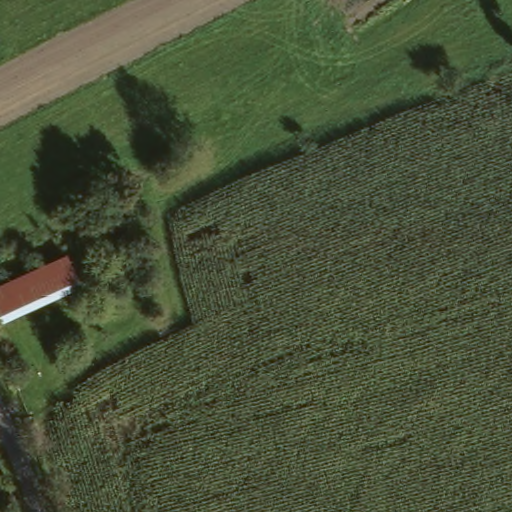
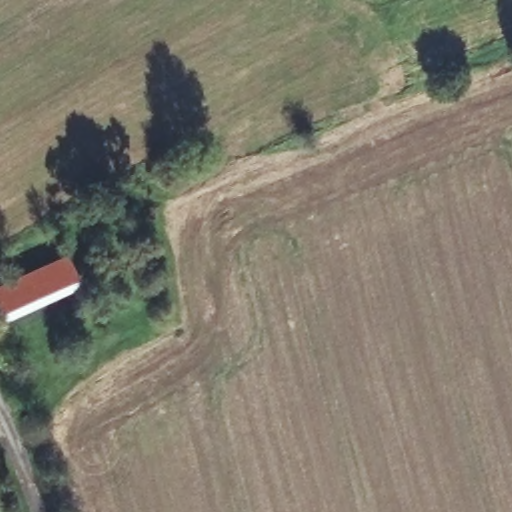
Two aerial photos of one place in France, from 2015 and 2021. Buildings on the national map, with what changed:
unchanged [(0,287),(67,254),(82,284),(1,325),(0,324),(0,287)]

